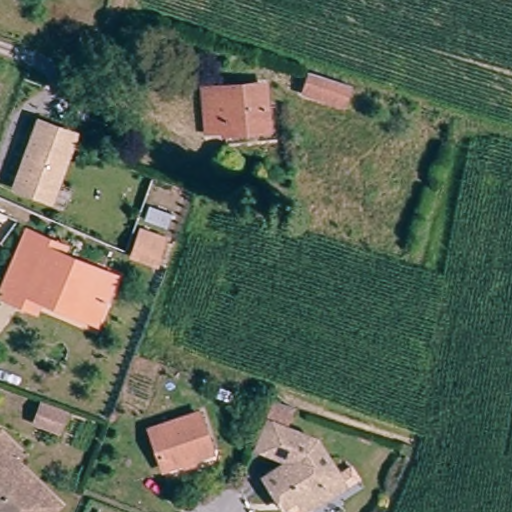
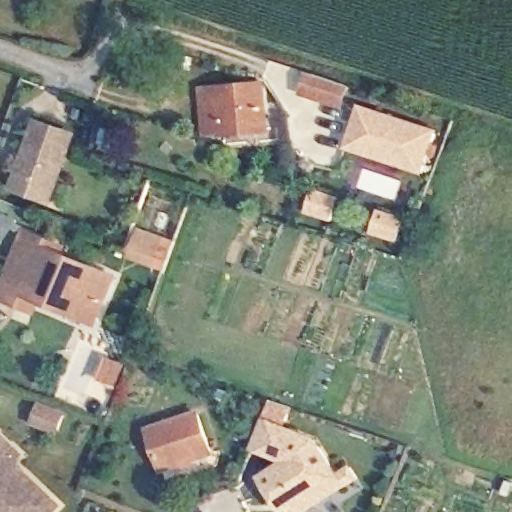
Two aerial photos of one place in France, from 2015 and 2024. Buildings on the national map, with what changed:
unchanged [(345,105),(304,93),(311,73),(351,86),(345,105)]
unchanged [(268,130),(227,134),(226,130),(209,131),(206,92),(265,85),(268,130)]
new [(439,128),(425,174),(346,149),(360,102),(439,128)]
unchanged [(58,201),(44,196),(11,185),(33,121),(65,132),(50,178),(64,183),(58,201)]
unchanged [(170,216),(166,227),(146,220),(151,209),(170,216)]
new [(4,246),(0,245),(0,215),(21,222),(4,246)]
unchanged [(0,296),(0,275),(18,228),(34,234),(56,242),(52,250),(101,269),(85,314),(31,294),(26,305),(9,299),(0,296)]
unchanged [(163,242),(155,264),(136,257),(143,235),(163,242)]
unchanged [(301,512),(286,512),(280,500),(274,503),(260,477),(280,466),(284,457),(252,444),(269,400),(289,406),(280,430),(314,443),(334,480),(347,473),(353,484),(339,492),(328,497),(301,512)]
unchanged [(69,412),(60,436),(32,425),(41,402),(69,412)]
unchanged [(210,450),(163,466),(149,426),(196,411),(210,450)]
unchanged [(13,460),(56,503),(47,512),(0,512),(0,437),(18,455),(13,460)]

